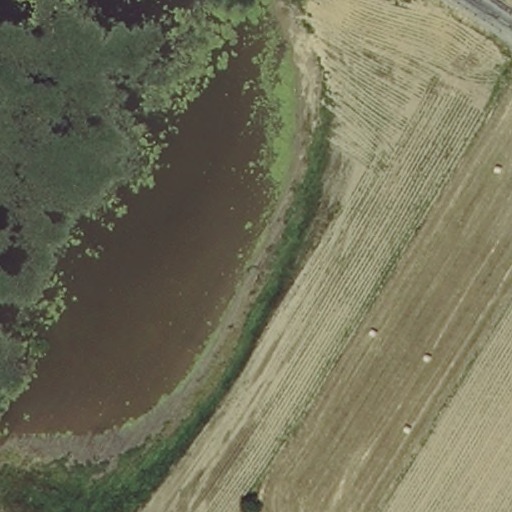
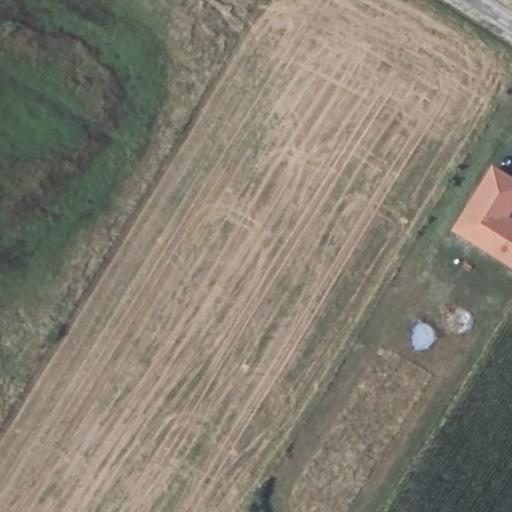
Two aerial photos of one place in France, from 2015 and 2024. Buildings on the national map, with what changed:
new [(457,229),(495,167),(512,178),(512,211),(508,217),(512,219),(512,263),(457,229)]

